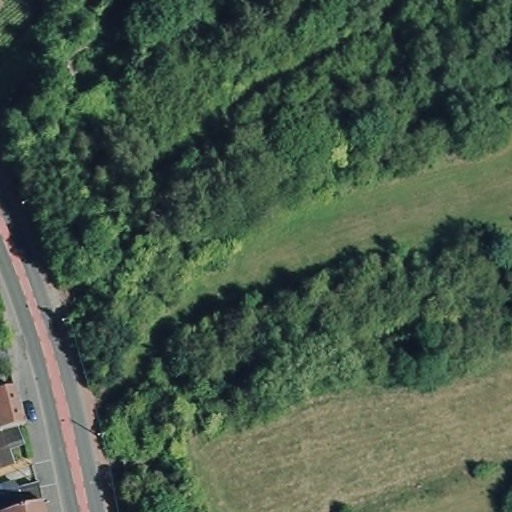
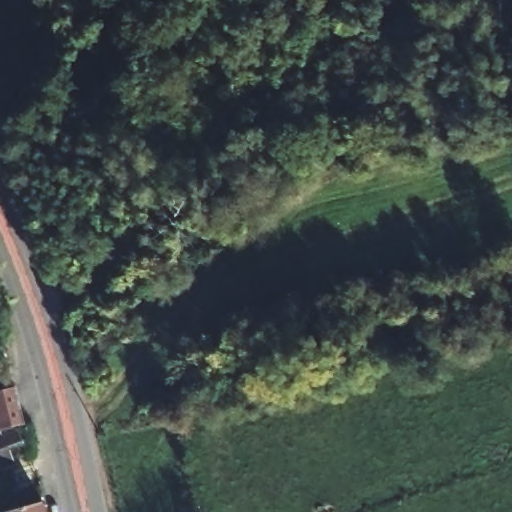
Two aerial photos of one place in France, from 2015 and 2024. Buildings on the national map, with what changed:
unchanged [(18,379),(27,418),(3,426),(0,427),(0,384),(4,382),(18,379)]
unchanged [(15,454),(0,462),(0,427),(3,426),(15,454)]
unchanged [(22,493),(0,501),(0,477),(16,472),(20,481),(40,476),(45,493),(23,499),(22,493)]
unchanged [(5,503),(23,499),(45,493),(49,512),(8,512),(5,503)]

